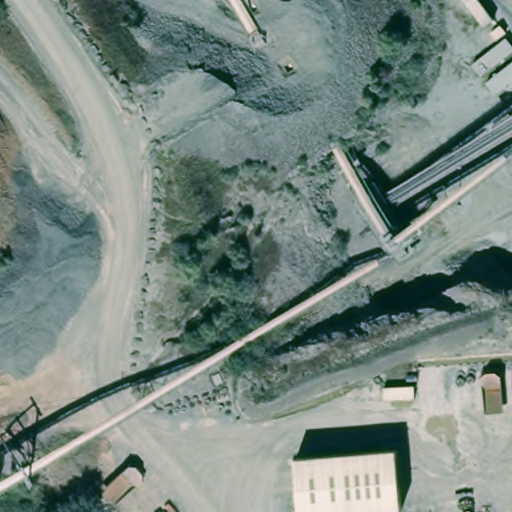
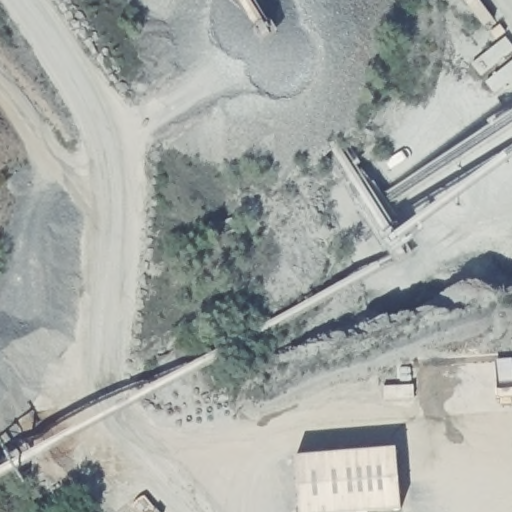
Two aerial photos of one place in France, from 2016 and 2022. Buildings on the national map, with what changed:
unchanged [(512,50),(512,85),(495,62),(512,50)]
unchanged [(390,254),(358,203),(373,194),(406,245),(390,254)]
unchanged [(404,512),(302,512),(298,456),(399,448),(404,512)]

